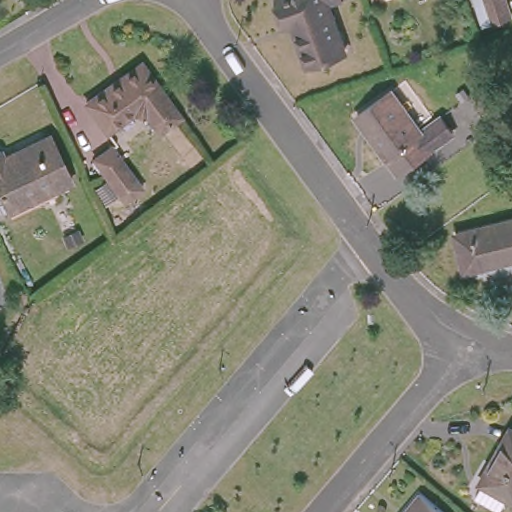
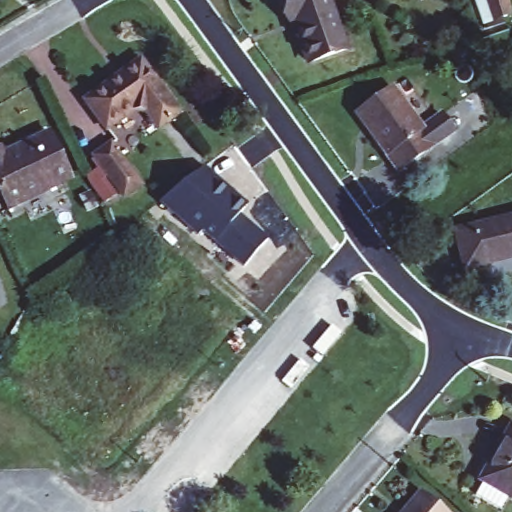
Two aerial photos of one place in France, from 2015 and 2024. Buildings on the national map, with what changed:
unchanged [(304,61),(290,21),(285,24),(276,0),(330,0),(322,3),(339,49),(304,61)]
unchanged [(480,14),(476,0),(497,0),(500,7),(480,14)]
unchanged [(157,124),(144,106),(130,106),(103,125),(83,98),(111,78),(137,58),(141,62),(176,110),(157,124)]
unchanged [(434,144),(399,169),(357,113),(393,89),(434,144)]
unchanged [(49,135),(70,181),(6,211),(0,198),(0,150),(3,156),(49,135)]
unchanged [(133,180),(117,192),(87,153),(102,141),(133,180)]
new [(247,206),(237,216),(267,241),(244,269),(201,233),(197,238),(157,204),(205,169),(247,206)]
unchanged [(468,270),(459,233),(512,218),(512,257),(468,270)]
unchanged [(479,475),(500,436),(505,439),(512,426),(512,495),(479,475)]
unchanged [(448,512),(405,512),(424,491),(448,512)]

